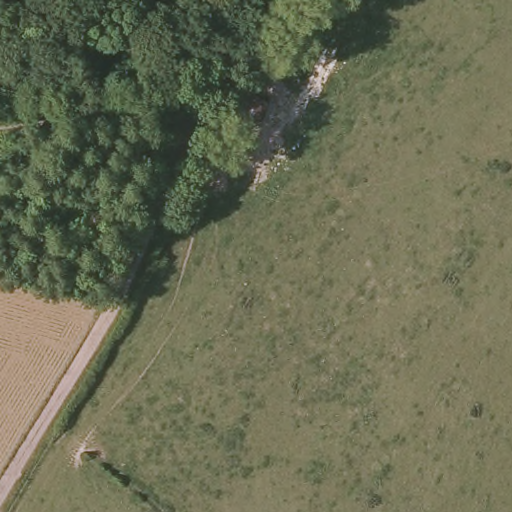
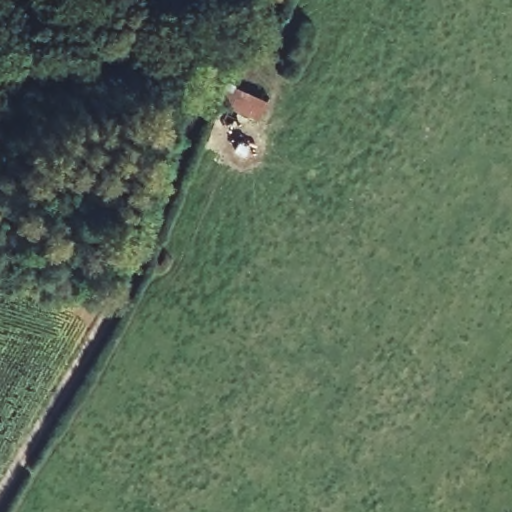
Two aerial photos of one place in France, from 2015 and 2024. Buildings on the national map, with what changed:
unchanged [(265,124),(223,106),(231,87),(274,106),(265,124)]

